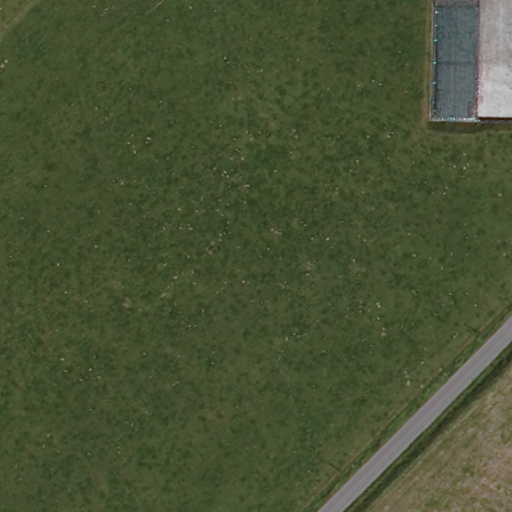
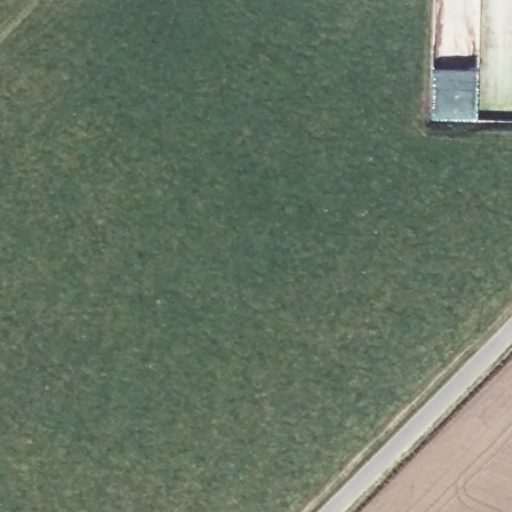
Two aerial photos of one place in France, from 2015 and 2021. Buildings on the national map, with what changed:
[]

